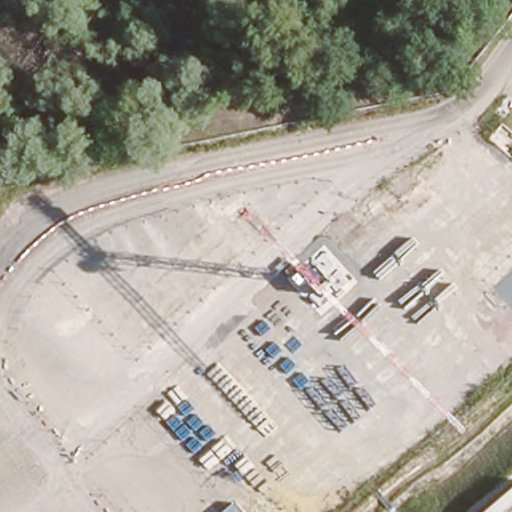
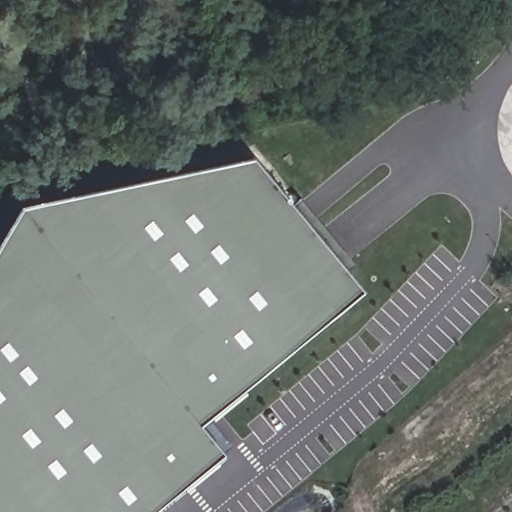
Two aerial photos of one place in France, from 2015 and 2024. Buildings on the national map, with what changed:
new [(256,153),(370,294),(207,424),(230,453),(160,512),(0,512),(0,235),(20,201),(256,153)]

